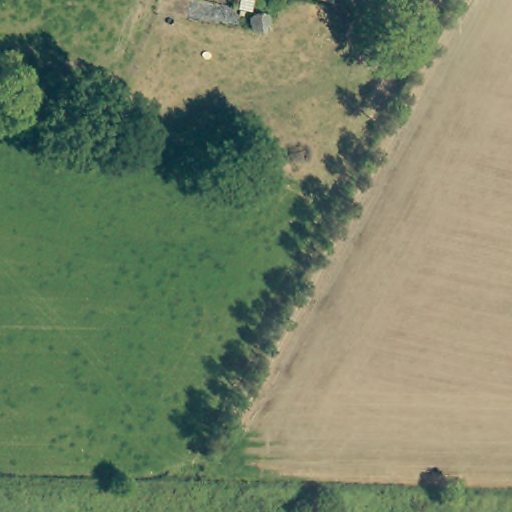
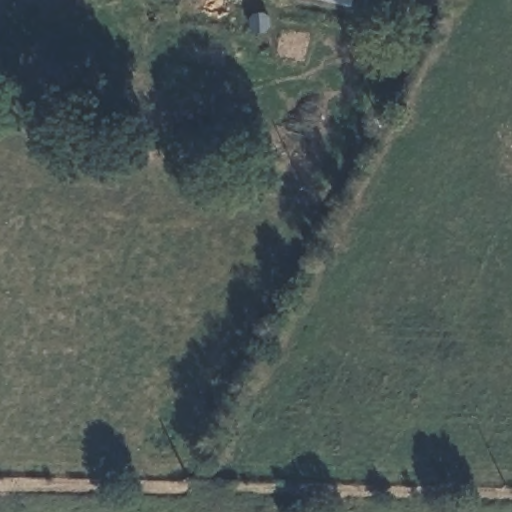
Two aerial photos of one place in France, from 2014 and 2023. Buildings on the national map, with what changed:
unchanged [(329,0),(335,0),(335,1),(329,0)]
unchanged [(261,12),(264,15),(265,19),(263,24),(260,28),(256,29),(251,29),(247,26),(245,21),(245,16),(248,13),(252,10),(257,10),(261,12)]

